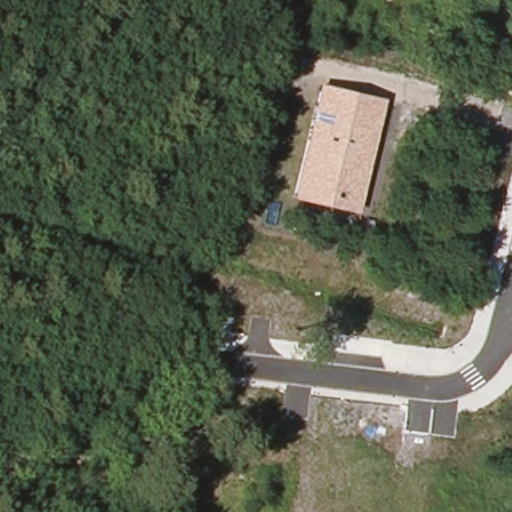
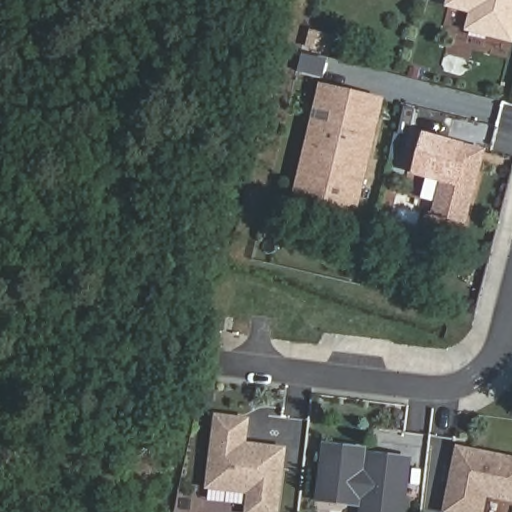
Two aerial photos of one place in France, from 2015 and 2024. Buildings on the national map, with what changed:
new [(469,14),(444,8),(446,0),(512,0),(512,44),(465,32),(469,14)]
unchanged [(358,213),(293,198),(319,83),(386,98),(358,213)]
new [(467,225),(432,215),(440,183),(409,175),(420,131),(486,149),(467,225)]
new [(206,489),(215,414),(251,418),(248,442),(288,447),(280,512),(245,512),(247,495),(206,489)]
new [(315,503),(322,442),(368,448),(368,452),(412,458),(406,512),(360,512),(361,508),(315,503)]
new [(484,512),(443,512),(457,446),(512,456),(512,504),(487,499),(484,512)]

